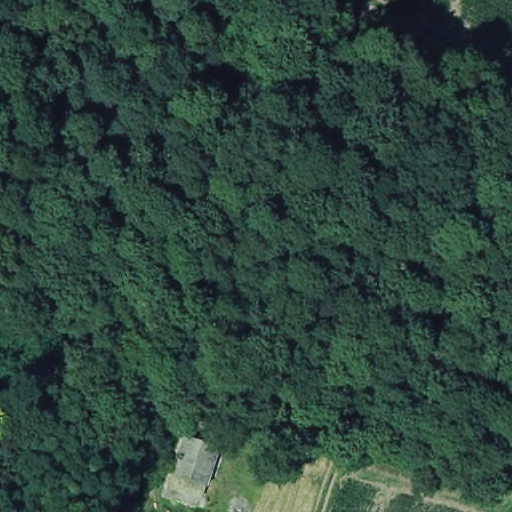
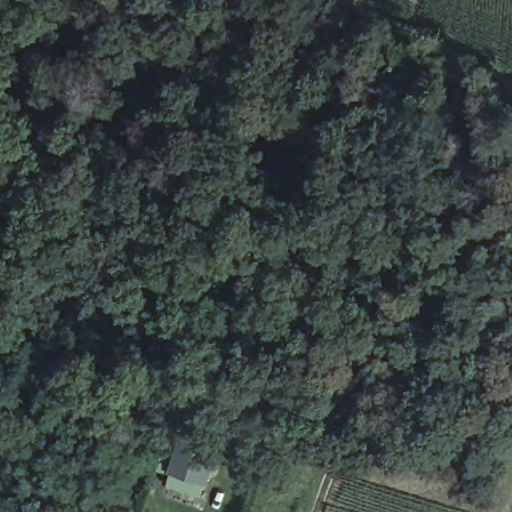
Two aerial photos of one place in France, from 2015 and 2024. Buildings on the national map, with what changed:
unchanged [(339,254),(349,257),(343,283),(329,285),(320,277),(325,252),(339,254)]
unchanged [(192,455),(194,446),(210,451),(195,498),(163,487),(176,443),(183,445),(181,452),(192,455)]

